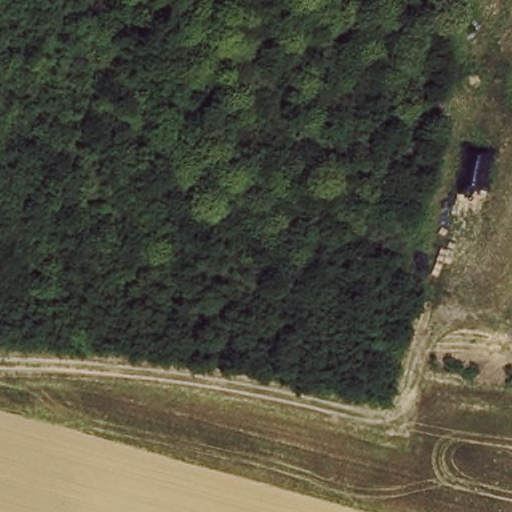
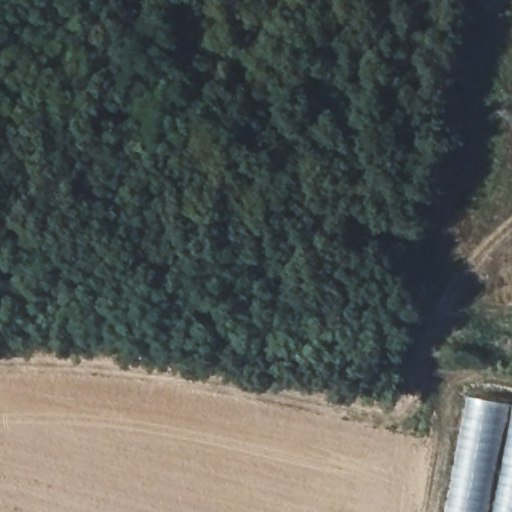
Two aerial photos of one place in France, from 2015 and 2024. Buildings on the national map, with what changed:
new [(467,397),(512,406),(512,512),(445,512),(467,397)]

